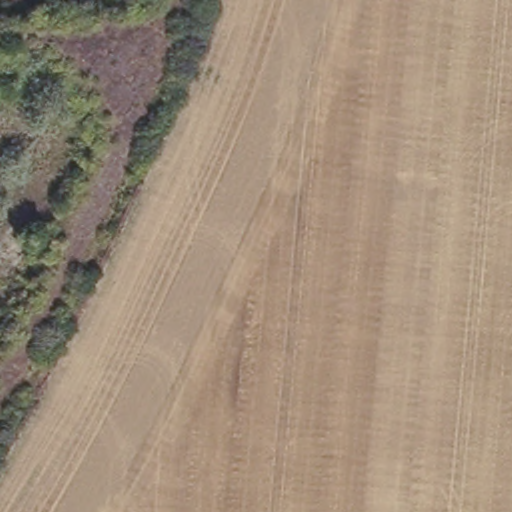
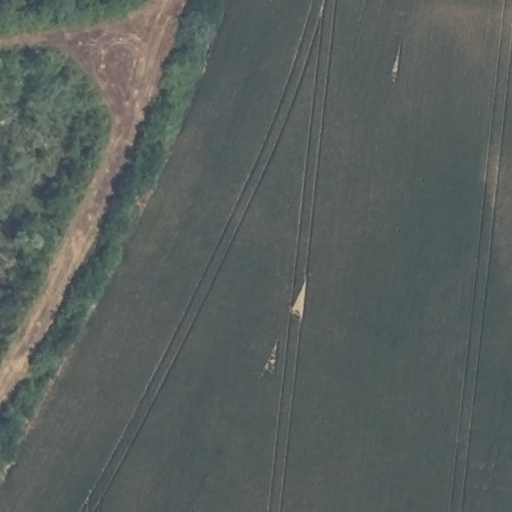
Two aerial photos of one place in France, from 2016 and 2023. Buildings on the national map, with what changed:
[]

